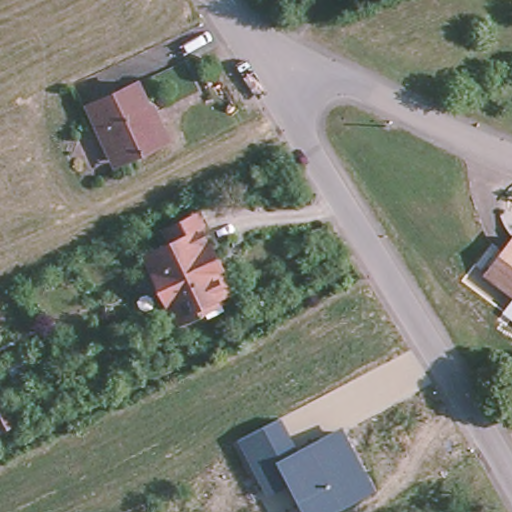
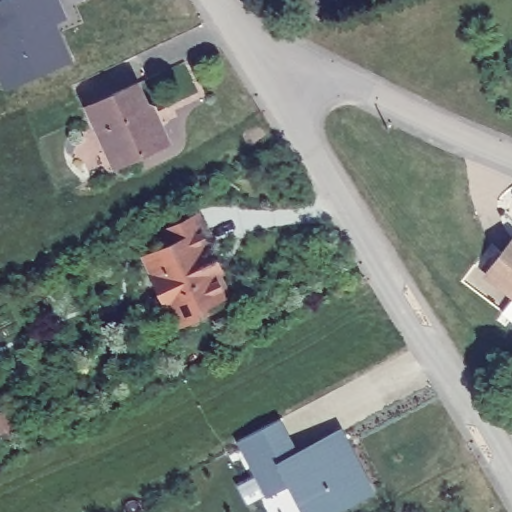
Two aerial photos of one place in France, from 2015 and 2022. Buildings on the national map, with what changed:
new [(68,17),(57,22),(74,60),(4,89),(0,80),(0,0),(60,0),(68,17)]
unchanged [(137,84),(156,123),(159,122),(168,141),(125,161),(120,151),(108,150),(88,107),(137,84)]
unchanged [(171,307),(166,297),(157,279),(148,260),(158,256),(172,249),(166,235),(171,233),(201,219),(215,248),(212,250),(218,262),(214,264),(218,271),(227,291),(230,296),(221,300),(224,305),(189,321),(180,326),(175,317),(171,307)]
unchanged [(488,280),(512,247),(512,298),(488,280)]
unchanged [(282,419),(298,450),(344,427),(376,492),(335,512),(303,512),(289,485),(266,496),(238,440),(282,419)]

